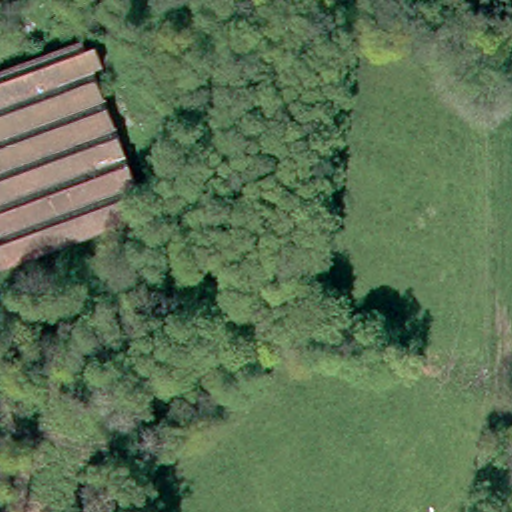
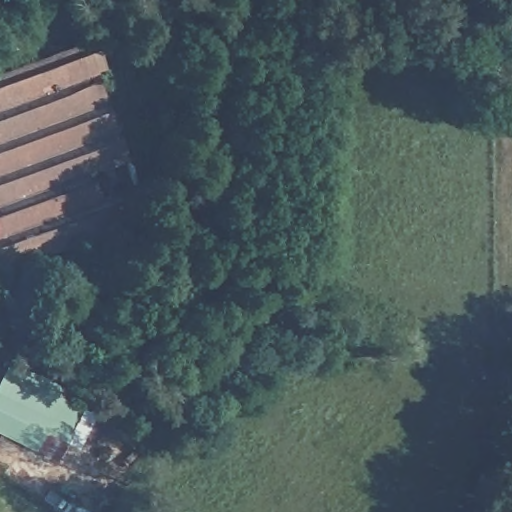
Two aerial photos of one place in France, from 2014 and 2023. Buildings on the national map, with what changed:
unchanged [(85,52),(95,48),(104,73),(94,77),(105,109),(116,105),(122,121),(115,124),(117,129),(124,126),(130,143),(122,146),(144,210),(0,265),(0,63),(78,32),(85,52)]
new [(83,410),(59,461),(0,432),(0,388),(9,372),(83,410)]

